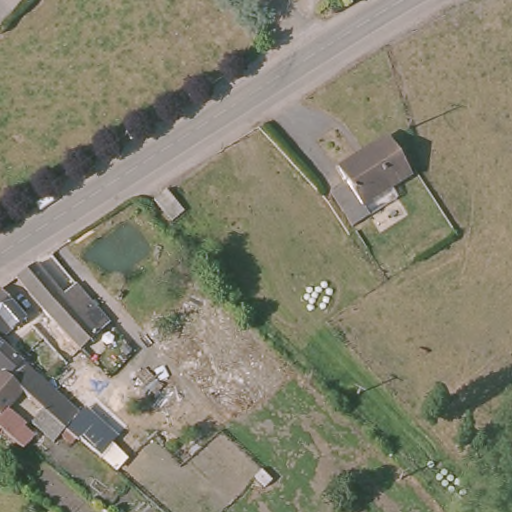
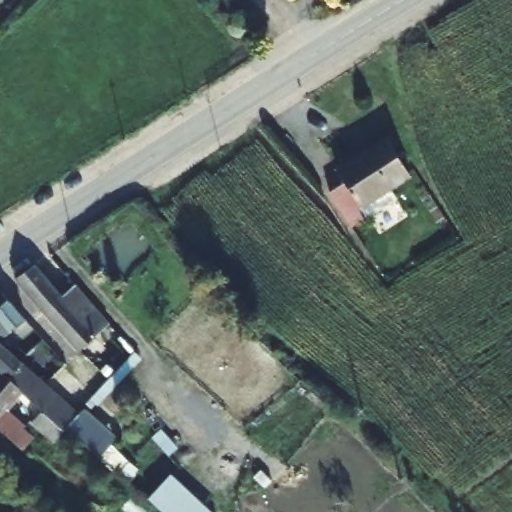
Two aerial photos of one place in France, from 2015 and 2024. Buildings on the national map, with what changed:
unchanged [(290,34),(285,26),(293,22),(297,30),(290,34)]
unchanged [(330,194),(344,184),(337,173),(370,148),(376,154),(388,142),(410,178),(362,210),(366,218),(350,228),(330,194)]
demolished [(146,193),(157,182),(177,201),(166,212),(146,193)]
unchanged [(31,267),(60,297),(96,335),(80,349),(9,283),(31,267)]
unchanged [(77,283),(113,320),(108,324),(96,335),(60,297),(77,283)]
unchanged [(23,315),(0,338),(0,292),(23,315)]
unchanged [(30,424),(34,420),(18,406),(28,396),(8,379),(0,371),(0,340),(113,444),(97,459),(65,429),(51,444),(30,424)]
unchanged [(0,387),(0,371),(8,379),(0,387)]
unchanged [(10,410),(28,424),(26,428),(36,436),(23,449),(1,430),(0,429),(0,387),(8,379),(25,393),(10,410)]
unchanged [(1,430),(0,431),(0,429),(1,430)]
new [(148,499),(172,474),(215,512),(163,512),(148,499)]

